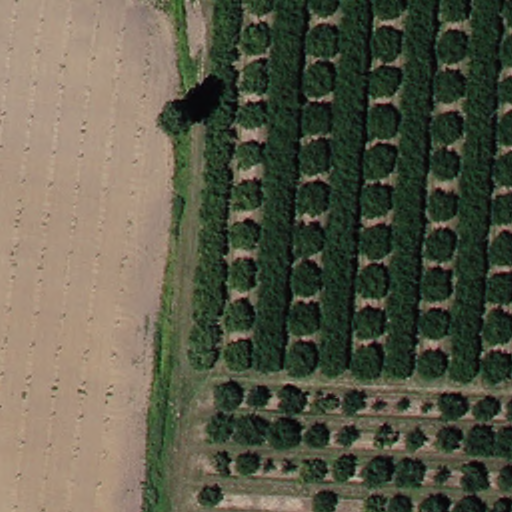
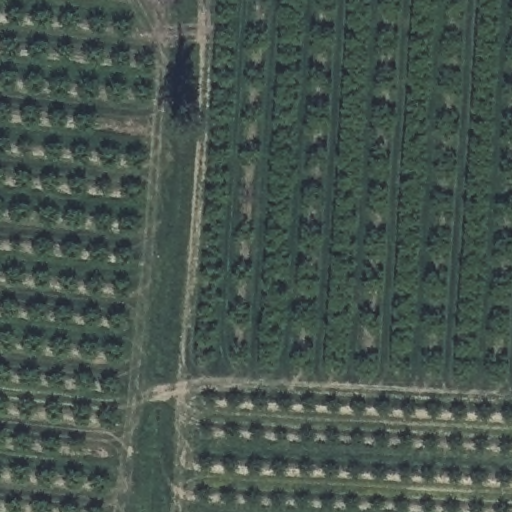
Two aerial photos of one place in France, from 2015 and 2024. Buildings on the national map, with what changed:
[]

